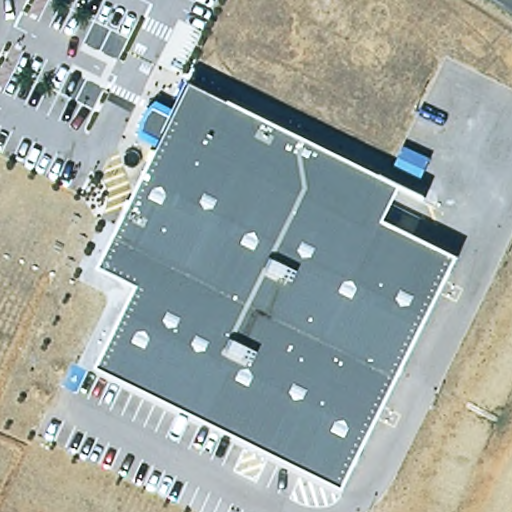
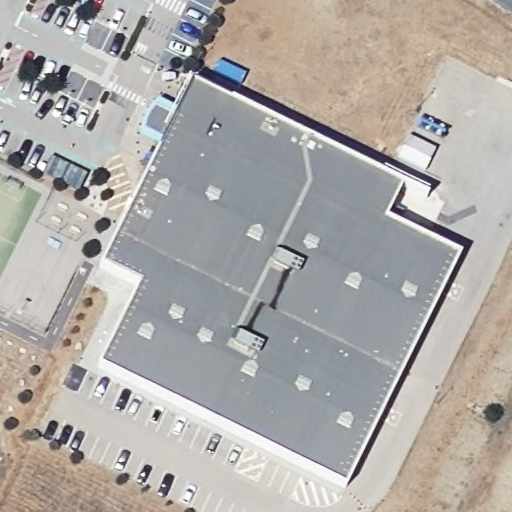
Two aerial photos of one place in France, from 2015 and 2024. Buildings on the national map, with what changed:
unchanged [(368,175),(350,210),(380,225),(453,261),(338,494),(90,372),(130,291),(92,272),(155,146),(139,139),(140,137),(141,128),(145,122),(150,115),(152,112),(167,120),(185,85),(368,175)]
unchanged [(397,190),(380,225),(350,210),(368,175),(397,190)]

